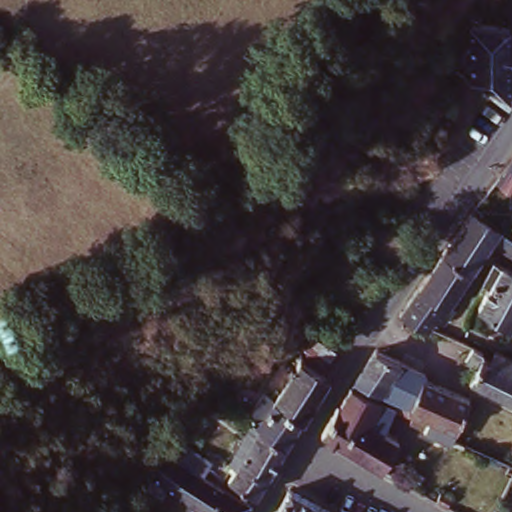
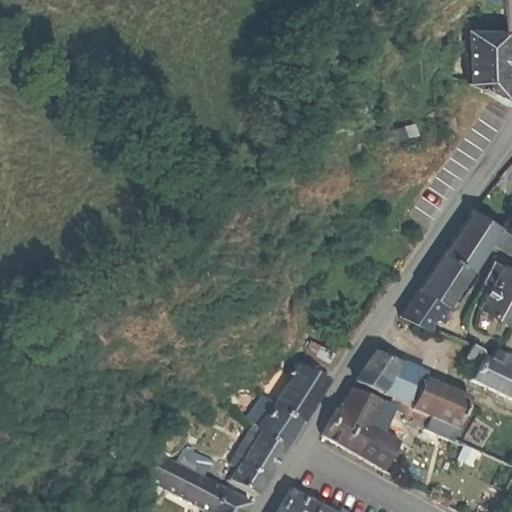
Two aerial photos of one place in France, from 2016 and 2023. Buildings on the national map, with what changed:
unchanged [(488,94),(490,91),(472,84),(474,28),(485,26),(485,34),(512,34),(512,106),(488,94)]
unchanged [(500,253),(486,246),(467,274),(440,258),(470,217),(495,234),(500,225),(512,233),(512,254),(510,258),(500,253)]
unchanged [(444,309),(443,312),(415,294),(440,258),(467,274),(444,309)]
unchanged [(495,285),(487,282),(496,259),(512,268),(512,323),(511,324),(483,309),(481,308),(495,285)]
unchanged [(415,294),(443,312),(444,309),(450,313),(441,328),(431,323),(425,332),(422,337),(394,323),(415,294)]
unchanged [(474,388),(485,363),(473,357),(478,346),(480,340),(503,349),(512,353),(512,405),(474,388)]
unchanged [(256,432),(272,409),(286,389),(302,366),(305,368),(318,346),(331,354),(327,362),(333,366),(325,380),(330,384),(316,408),(305,428),(302,427),(287,452),(260,436),(256,432)]
unchanged [(432,429),(435,424),(412,414),(404,409),(396,406),(400,399),(391,394),(365,382),(382,354),(386,353),(408,364),(432,375),(430,379),(477,398),(460,440),(454,438),(432,429)]
unchanged [(408,427),(401,440),(406,442),(392,471),(366,457),(351,449),(330,438),(346,409),(348,409),(361,388),(374,394),(385,399),(396,406),(404,409),(398,422),(408,427)]
unchanged [(240,465),(260,436),(287,452),(270,481),(257,501),(229,484),(240,465)]
unchanged [(460,448),(463,442),(470,445),(469,451),(466,450),(460,448)]
unchanged [(170,464),(176,468),(184,454),(210,468),(212,464),(222,469),(217,480),(205,474),(202,481),(224,492),(212,512),(199,512),(156,489),(170,464)]
unchanged [(456,486),(450,498),(438,491),(443,479),(456,486)]
unchanged [(224,492),(252,509),(251,512),(212,512),(224,492)]
unchanged [(293,493),(320,508),(329,512),(282,512),(293,493)]
unchanged [(494,512),(487,512),(490,504),(496,508),(494,512)]

